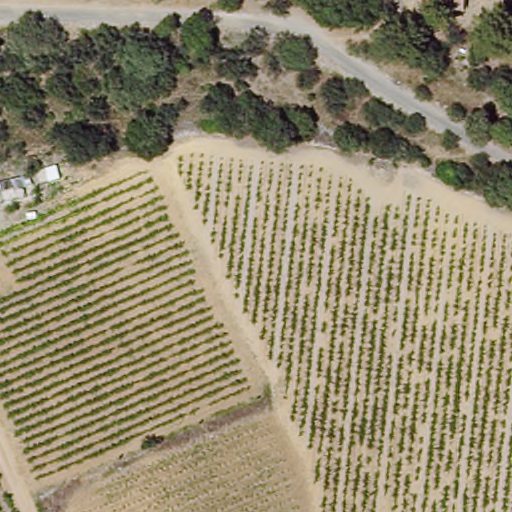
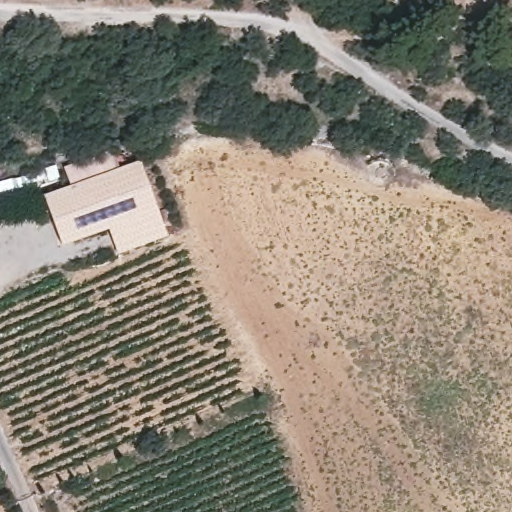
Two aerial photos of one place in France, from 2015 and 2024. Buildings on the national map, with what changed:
unchanged [(464,19),(417,18),(417,0),(464,0),(464,19)]
new [(140,165),(167,239),(118,256),(109,231),(62,248),(44,199),(140,165)]

